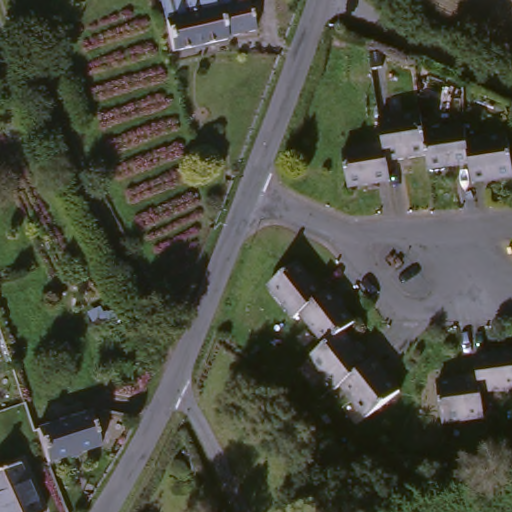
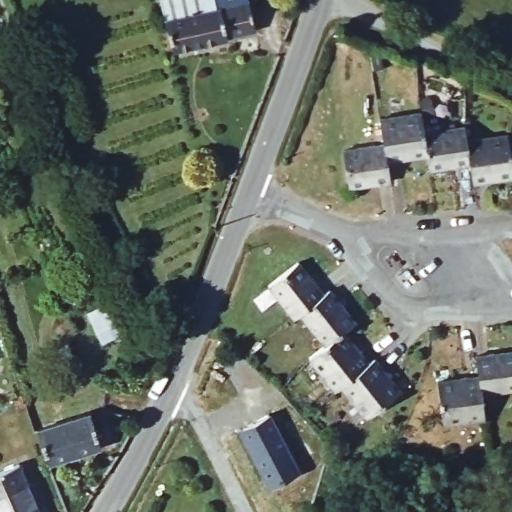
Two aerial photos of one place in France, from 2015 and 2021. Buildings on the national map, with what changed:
unchanged [(259,25),(231,31),(232,34),(178,47),(166,0),(254,0),(259,25)]
unchanged [(512,177),(478,181),(476,164),(433,170),(431,155),(392,160),(395,180),(353,186),(348,149),(388,143),(384,118),(426,112),(428,132),(470,126),(471,139),(512,133),(512,177)]
unchanged [(308,256),(333,289),(339,284),(365,317),(353,327),(377,358),(383,354),(409,388),(376,413),(351,381),(344,385),(318,352),(335,339),(310,308),(304,313),(278,280),(308,256)]
unchanged [(512,345),(512,384),(486,387),(489,412),(448,417),(442,375),(481,369),(479,350),(512,345)]
unchanged [(96,408),(106,442),(53,459),(46,436),(42,425),(96,408)]
new [(268,414),(298,472),(269,487),(238,430),(268,414)]
unchanged [(24,458),(46,512),(0,512),(0,511),(0,468),(24,458)]

